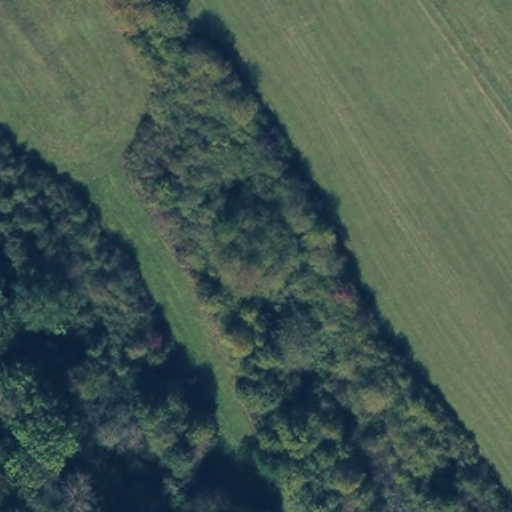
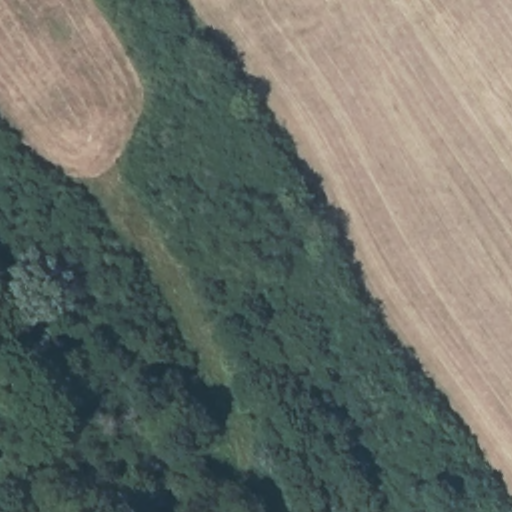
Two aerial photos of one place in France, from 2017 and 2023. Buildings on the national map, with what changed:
[]

